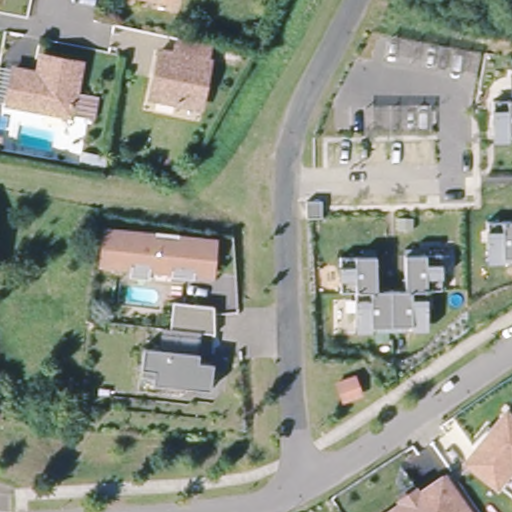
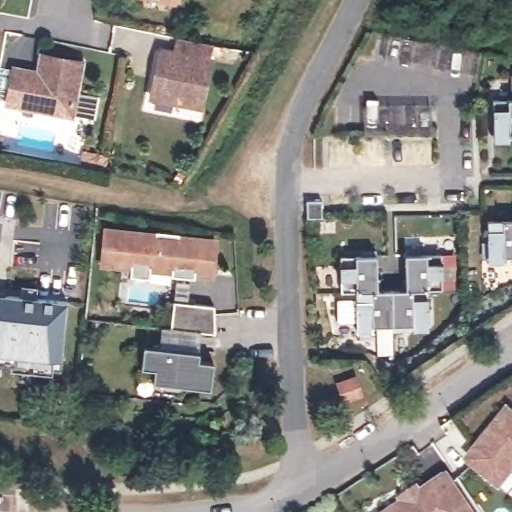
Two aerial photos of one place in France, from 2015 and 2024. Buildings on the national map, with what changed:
unchanged [(207,115),(158,104),(161,82),(168,84),(171,60),(182,61),(185,48),(214,53),(207,115)]
unchanged [(86,65),(80,92),(103,97),(98,120),(11,102),(0,100),(0,87),(5,64),(19,68),(44,73),(48,57),(86,65)]
unchanged [(495,136),(494,100),(512,100),(512,136),(495,136)]
unchanged [(330,205),(331,222),(328,222),(315,223),(315,215),(315,205),(330,205)]
unchanged [(195,270),(194,275),(172,271),(174,260),(152,256),(149,273),(130,270),(131,260),(103,255),(105,248),(109,221),(144,227),(144,232),(158,234),(159,225),(182,229),(181,233),(217,239),(213,266),(211,273),(195,270)]
unchanged [(489,257),(489,221),(512,221),(512,257),(489,257)]
unchanged [(443,254),(444,290),(429,290),(429,289),(408,290),(408,289),(407,254),(443,254)]
unchanged [(379,285),(379,291),(358,291),(358,292),(343,292),(342,256),(378,255),(379,285)]
new [(23,287),(39,288),(38,299),(69,302),(63,361),(55,360),(55,362),(54,372),(13,369),(14,366),(0,365),(0,295),(21,297),(23,287)]
unchanged [(430,325),(394,326),(394,290),(408,289),(408,290),(429,289),(429,290),(430,325)]
unchanged [(394,326),(359,326),(358,292),(358,291),(379,291),(394,290),(394,326)]
unchanged [(216,306),(214,333),(203,331),(170,325),(176,298),(216,306)]
unchanged [(143,345),(188,354),(198,356),(197,364),(212,367),(208,389),(137,375),(143,345)]
unchanged [(503,480),(473,456),(490,436),(512,408),(512,409),(512,469),(503,480)]
unchanged [(467,512),(381,512),(407,495),(408,498),(417,492),(443,475),(448,482),(463,505),(467,512)]

